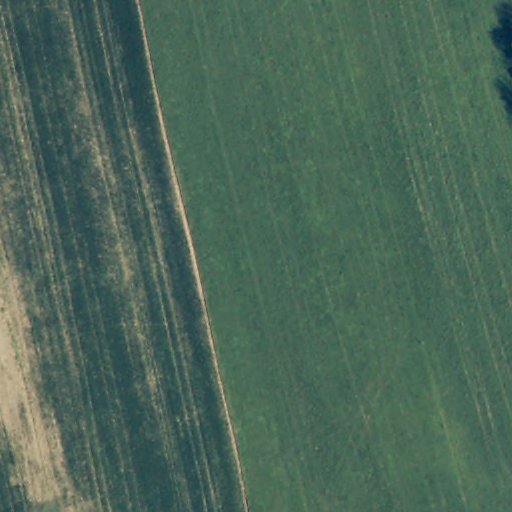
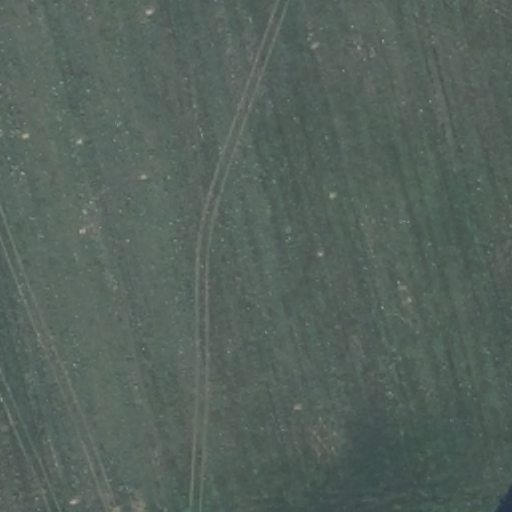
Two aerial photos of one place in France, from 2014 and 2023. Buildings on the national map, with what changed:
[]

